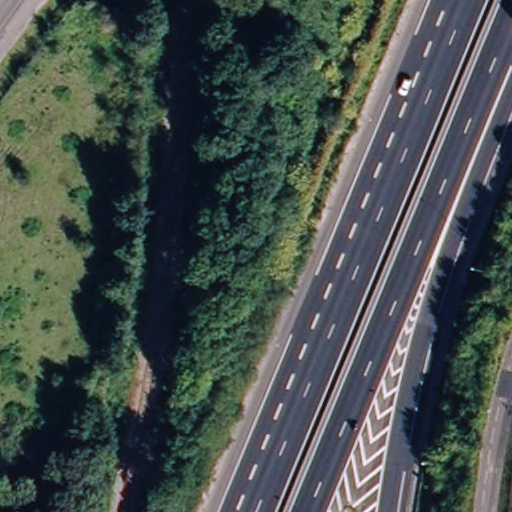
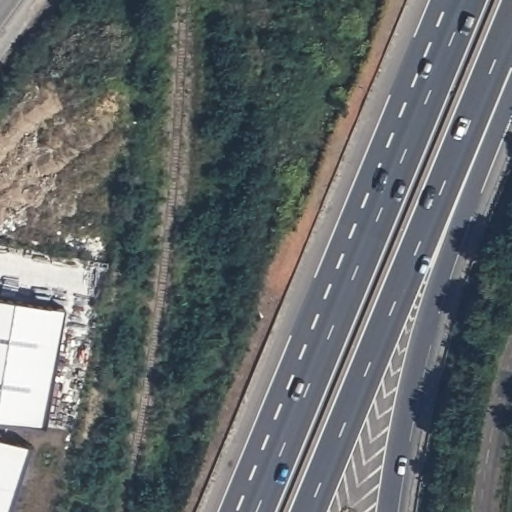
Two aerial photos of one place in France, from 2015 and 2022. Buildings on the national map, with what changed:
new [(63,307),(44,427),(0,420),(0,297),(63,307)]
new [(32,443),(24,512),(0,512),(0,438),(32,443)]

